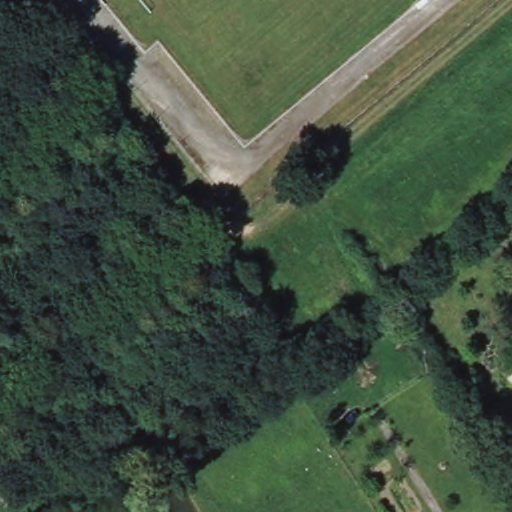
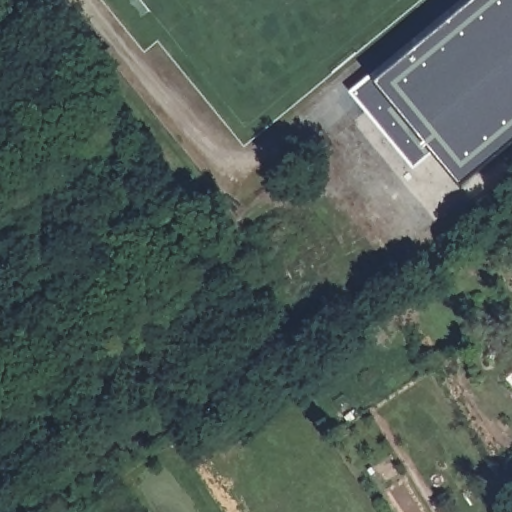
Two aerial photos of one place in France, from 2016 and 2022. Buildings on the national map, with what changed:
new [(352,91),(461,0),(512,0),(512,145),(462,186),(431,147),(413,165),(352,91)]

